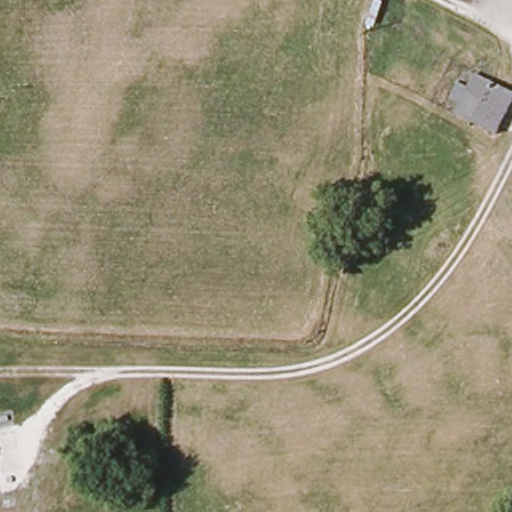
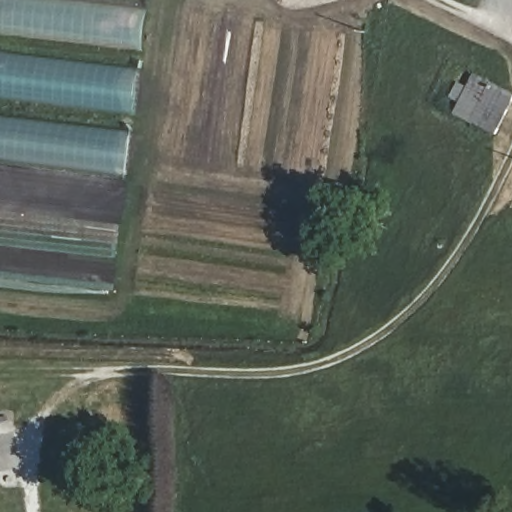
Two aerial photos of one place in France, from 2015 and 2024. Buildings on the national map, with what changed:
new [(127,179),(0,162),(0,0),(88,0),(148,7),(127,179)]
unchanged [(446,114),(468,71),(488,81),(510,92),(488,135),(466,124),(446,114)]
demolished [(512,272),(509,277),(490,268),(500,241),(512,247),(512,272)]

